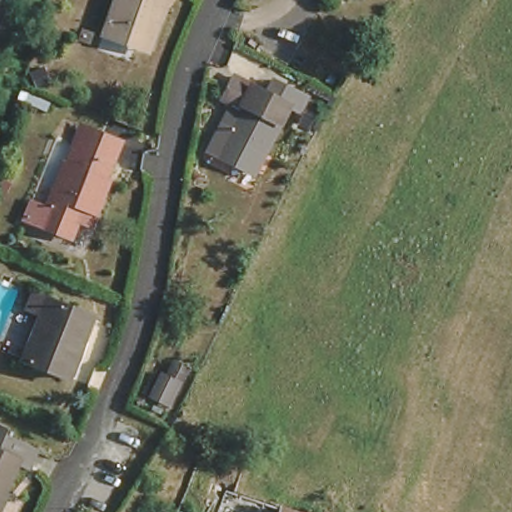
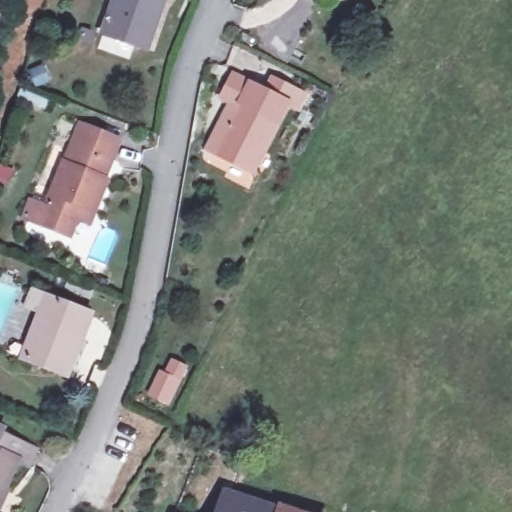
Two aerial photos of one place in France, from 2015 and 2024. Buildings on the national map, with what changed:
unchanged [(135,51),(102,39),(117,0),(166,0),(155,29),(146,55),(135,51)]
unchanged [(87,32),(77,29),(81,20),(90,24),(87,32)]
unchanged [(260,177),(222,156),(213,151),(237,106),(230,102),(240,82),(256,90),(294,110),(260,177)]
unchanged [(77,147),(112,161),(105,179),(107,181),(95,211),(82,205),(69,236),(40,222),(65,162),(70,164),(77,147)]
unchanged [(43,180),(36,176),(47,150),(55,154),(43,180)]
unchanged [(78,379),(34,360),(53,317),(39,310),(46,293),(61,300),(105,319),(78,379)]
unchanged [(0,512),(0,433),(6,436),(3,445),(38,460),(30,474),(19,470),(7,499),(10,500),(5,512),(0,512)]
new [(213,512),(224,487),(284,510),(283,512),(213,512)]
unchanged [(291,512),(283,512),(284,510),(291,512)]

